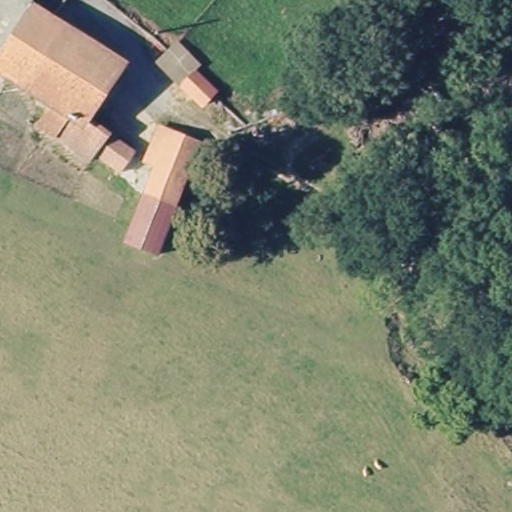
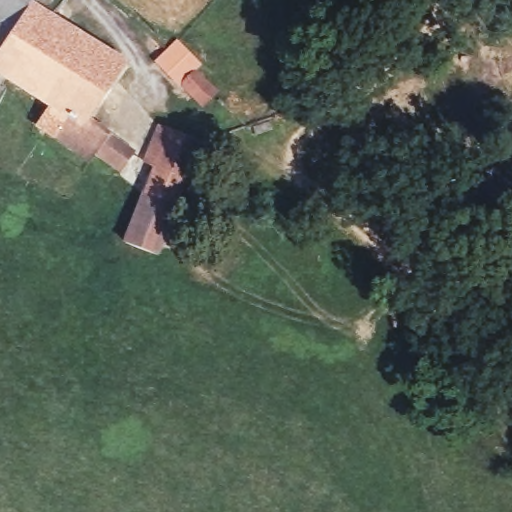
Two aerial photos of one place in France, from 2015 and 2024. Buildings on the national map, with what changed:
unchanged [(0,0),(27,0),(0,43),(0,0)]
unchanged [(120,55),(84,111),(79,120),(55,105),(0,70),(0,43),(27,0),(32,0),(48,10),(120,55)]
unchanged [(186,45),(206,64),(197,74),(215,94),(207,102),(204,106),(184,87),(179,91),(160,71),(175,55),(186,45)]
unchanged [(55,105),(79,120),(84,111),(139,147),(125,170),(96,150),(92,159),(40,125),(55,105)]
unchanged [(149,160),(164,123),(202,140),(196,157),(176,207),(149,197),(160,169),(149,160)]
unchanged [(149,197),(176,207),(156,256),(130,247),(149,197)]

